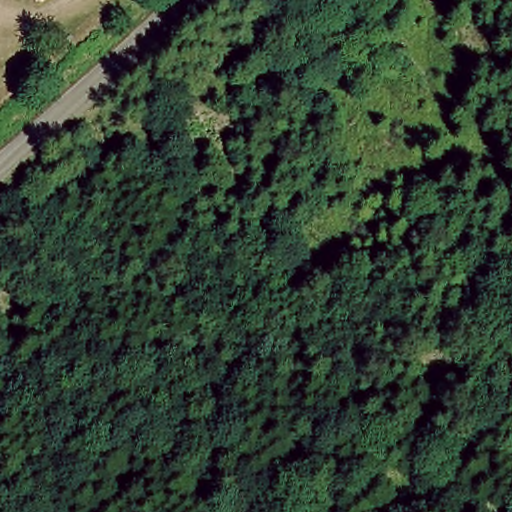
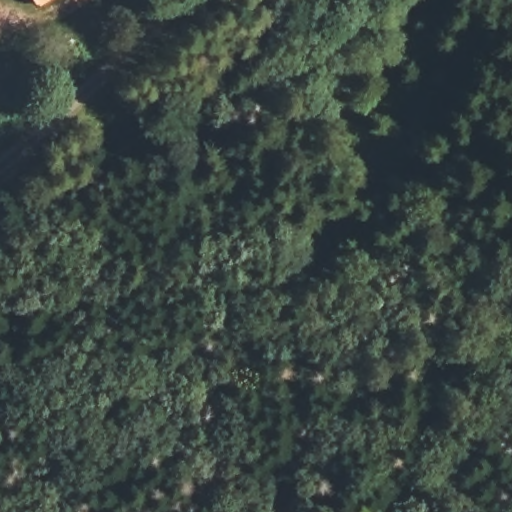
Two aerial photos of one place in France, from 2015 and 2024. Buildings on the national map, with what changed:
unchanged [(35,19),(25,0),(67,0),(35,19)]

